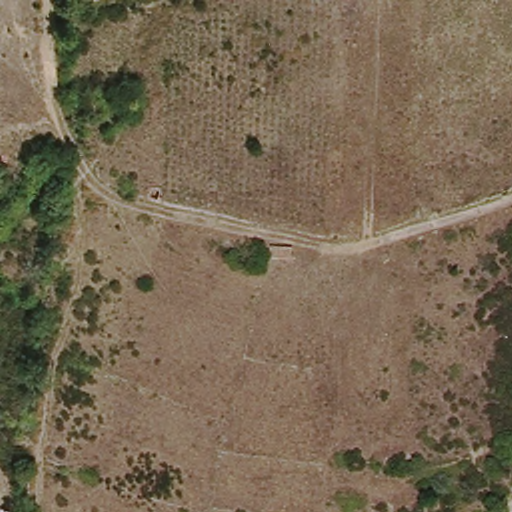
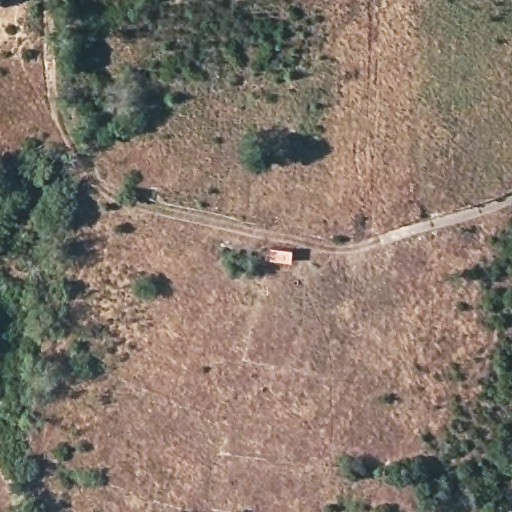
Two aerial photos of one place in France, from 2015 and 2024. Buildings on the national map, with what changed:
unchanged [(290,248),(290,260),(270,260),(270,250),(290,248)]

